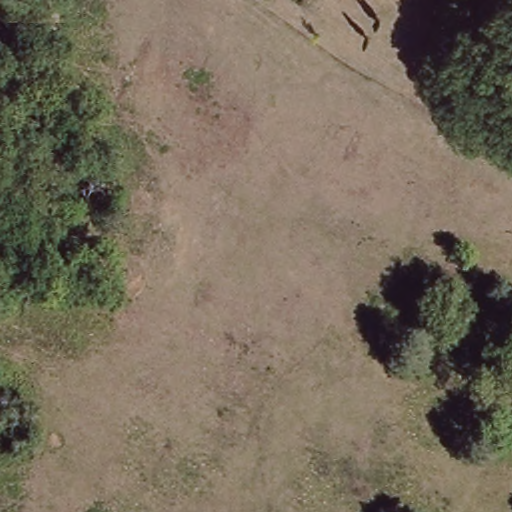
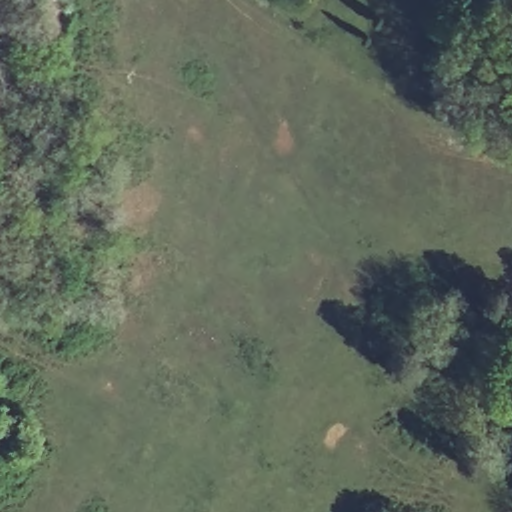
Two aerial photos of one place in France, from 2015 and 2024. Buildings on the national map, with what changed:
[]

